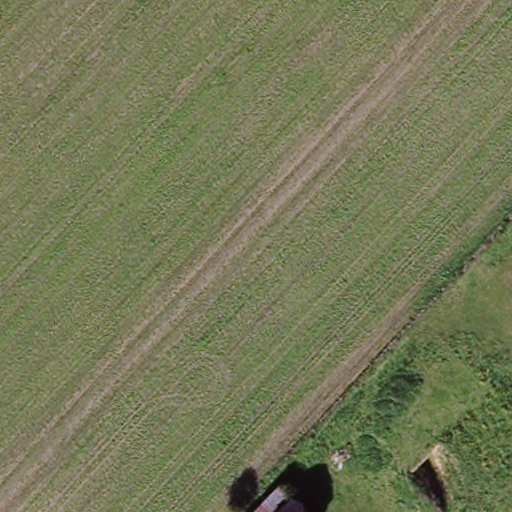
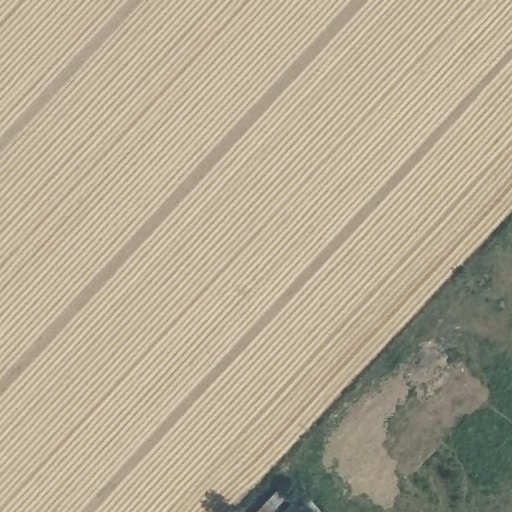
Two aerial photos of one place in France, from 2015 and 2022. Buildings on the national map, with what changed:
unchanged [(292,498),(308,512),(279,512),(292,498)]

